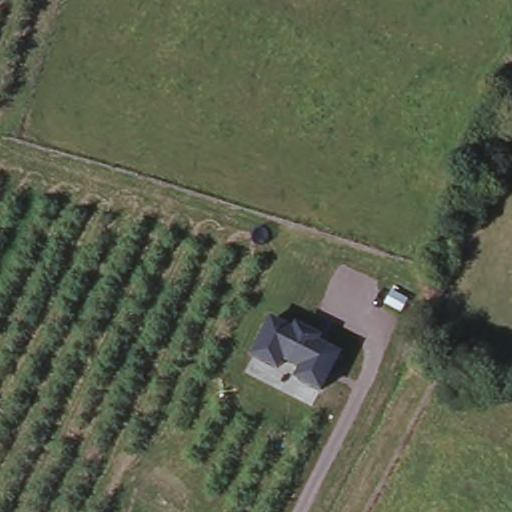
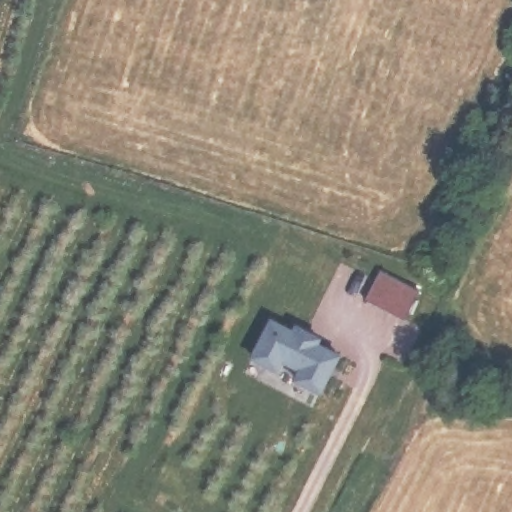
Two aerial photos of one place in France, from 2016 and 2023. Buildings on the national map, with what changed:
new [(379,273),(421,294),(405,322),(366,302),(379,273)]
unchanged [(321,395),(293,381),(298,372),(280,364),(275,372),(250,360),(269,317),(292,329),(295,323),(325,338),(321,344),(341,354),(321,395)]

